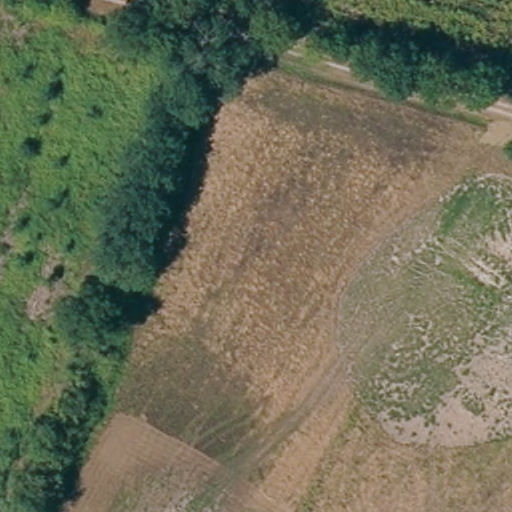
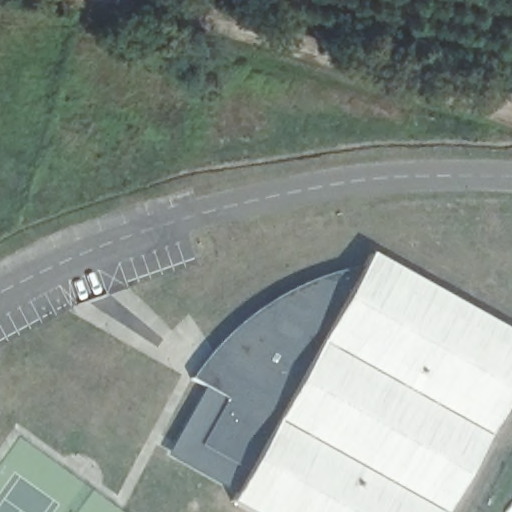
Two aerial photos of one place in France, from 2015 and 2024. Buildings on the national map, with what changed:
new [(215,347),(237,327),(261,309),(277,297),(295,288),(318,279),(339,273),(360,268),(368,253),(512,333),(512,391),(445,512),(251,512),(230,500),(234,493),(166,456),(205,387),(191,379),(198,368),(215,347)]

